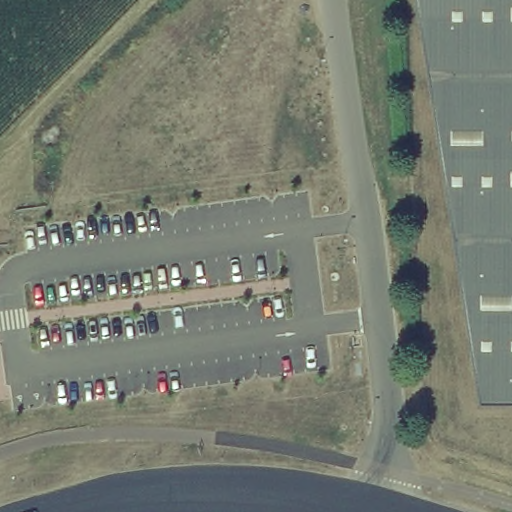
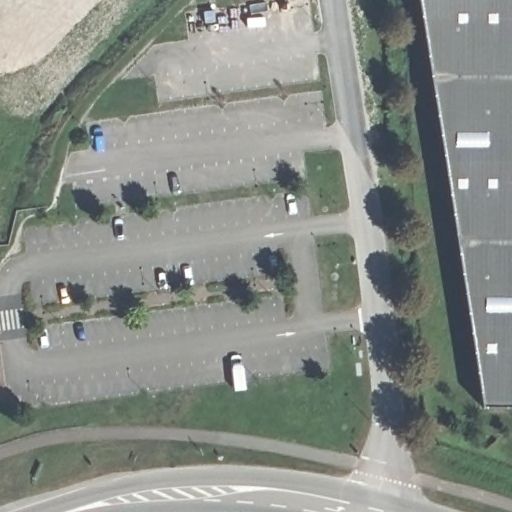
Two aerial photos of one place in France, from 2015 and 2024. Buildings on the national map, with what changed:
unchanged [(481,401),(418,0),(512,0),(512,401),(481,401)]

